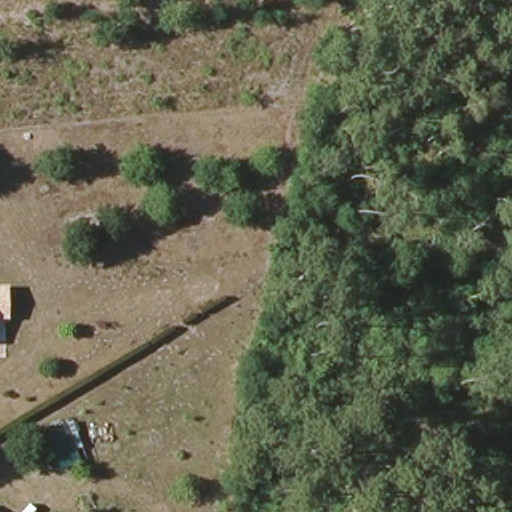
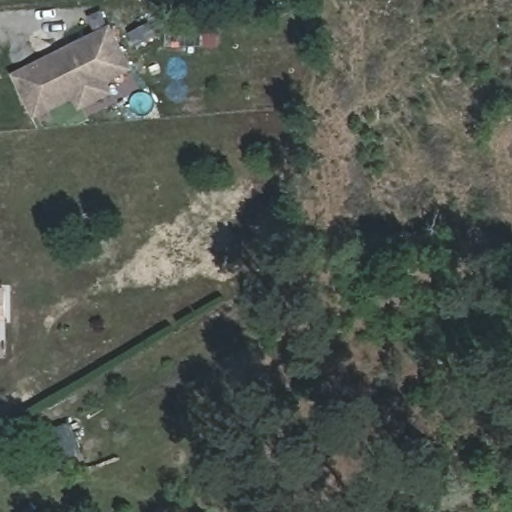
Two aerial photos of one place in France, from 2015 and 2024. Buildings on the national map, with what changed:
new [(35,119),(13,74),(112,25),(134,70),(109,81),(115,94),(80,110),(75,99),(35,119)]
unchanged [(9,293),(9,320),(0,320),(0,293),(9,293)]
new [(58,472),(43,434),(72,422),(87,459),(58,472)]

